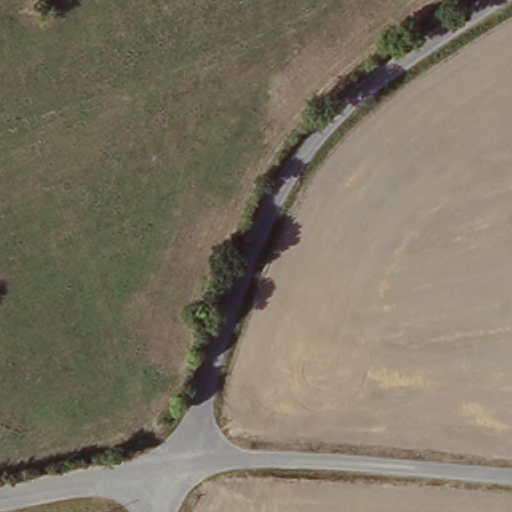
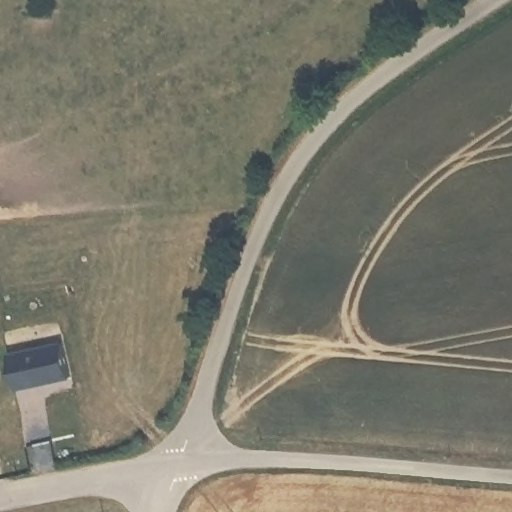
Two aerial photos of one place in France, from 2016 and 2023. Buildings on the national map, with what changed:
new [(9,354),(62,344),(70,378),(17,390),(9,354)]

